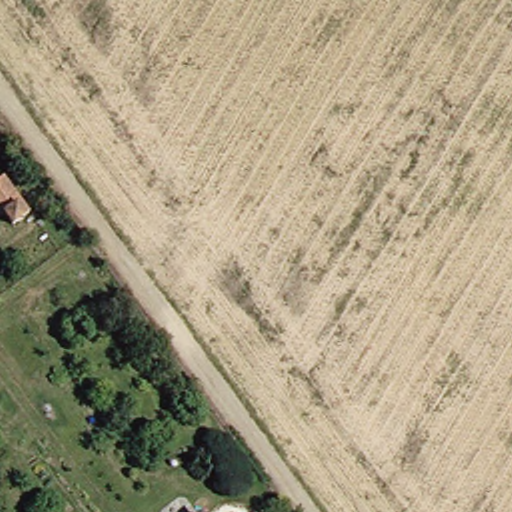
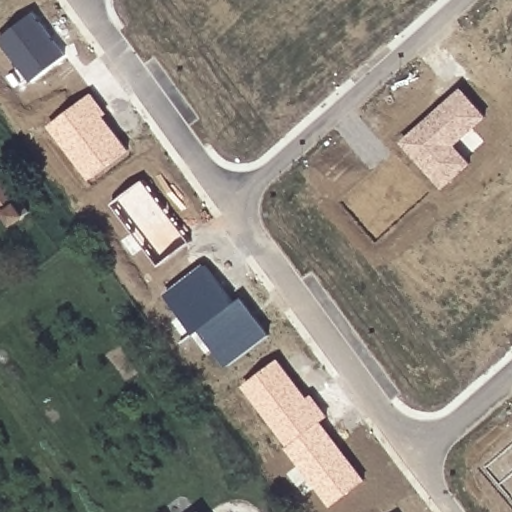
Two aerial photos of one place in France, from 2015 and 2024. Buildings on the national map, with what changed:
new [(0,39),(36,12),(68,54),(33,80),(0,39)]
new [(401,141),(462,87),(488,116),(456,145),(473,164),(443,189),(401,141)]
new [(49,125),(94,92),(109,112),(106,115),(131,149),(91,179),(49,125)]
unchanged [(30,211),(13,224),(5,212),(0,215),(0,179),(3,176),(30,211)]
new [(113,204),(145,180),(191,241),(160,265),(113,204)]
new [(201,330),(195,333),(166,294),(206,263),(237,301),(245,295),(273,332),(229,365),(201,330)]
new [(280,358),(309,397),(314,394),(330,415),(322,421),(367,479),(330,506),(287,448),(289,446),(243,385),(280,358)]
new [(483,468),(512,444),(512,501),(483,468)]
unchanged [(195,511),(196,512),(194,512),(195,511)]

